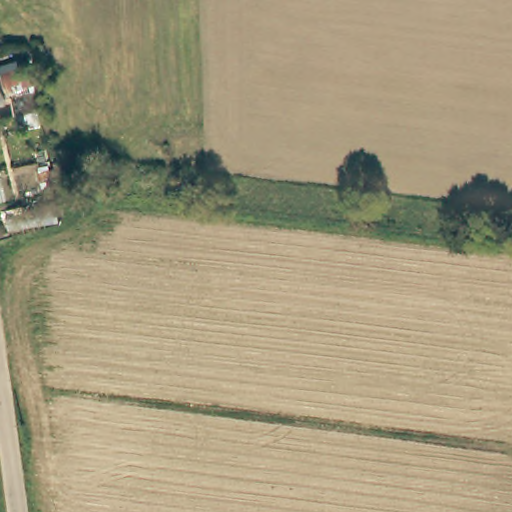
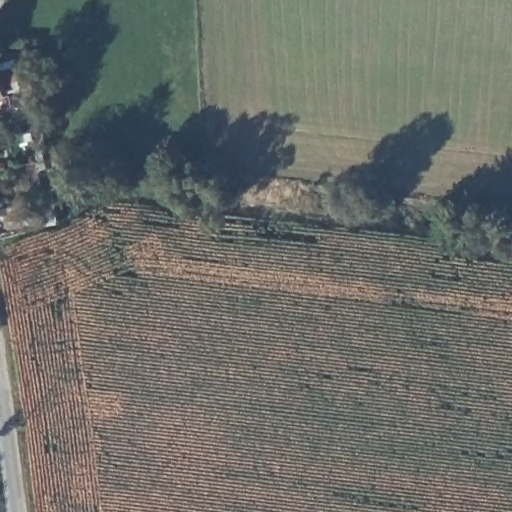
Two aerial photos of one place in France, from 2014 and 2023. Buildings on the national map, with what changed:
unchanged [(46,130),(28,134),(27,127),(11,129),(6,106),(0,108),(0,71),(36,64),(46,130)]

